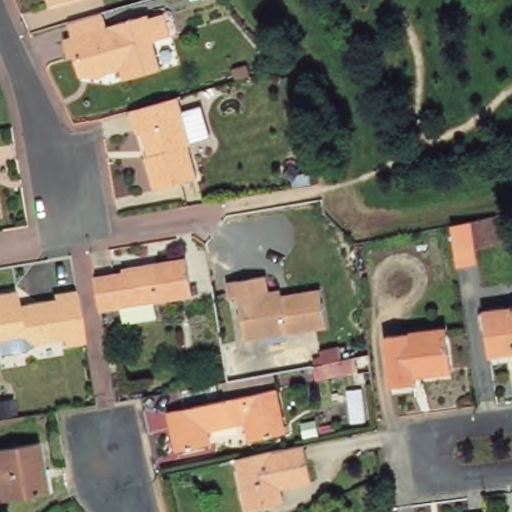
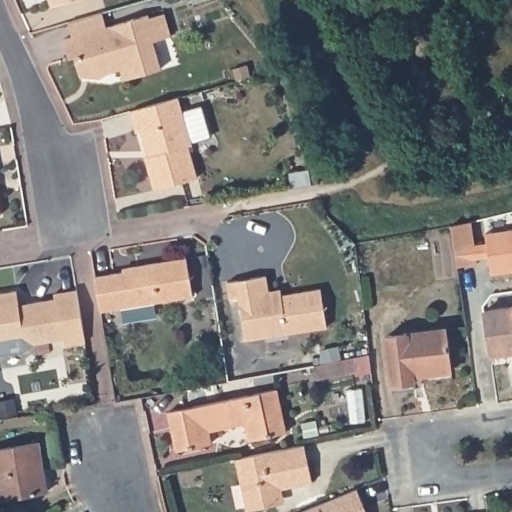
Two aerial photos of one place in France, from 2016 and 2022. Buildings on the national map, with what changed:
unchanged [(51,2),(50,0),(58,0),(51,2)]
unchanged [(101,11),(135,1),(139,15),(148,13),(149,16),(164,12),(170,34),(153,39),(160,67),(123,78),(120,68),(106,72),(99,69),(79,75),(74,55),(69,57),(63,38),(105,25),(101,11)]
unchanged [(192,147),(188,148),(197,179),(155,191),(146,158),(149,157),(142,132),(137,133),(130,114),(179,100),(192,147)]
unchanged [(500,251),(476,254),(478,268),(458,270),(452,227),(496,221),(500,251)]
unchanged [(125,272),(124,268),(182,258),(189,296),(96,312),(95,305),(90,278),(125,272)]
unchanged [(261,280),(264,295),(275,293),(277,299),(316,292),(323,331),(241,344),(234,302),(225,303),(223,286),(261,280)]
unchanged [(60,343),(59,337),(29,342),(20,333),(0,337),(0,291),(13,289),(16,303),(52,297),(51,292),(72,288),(80,340),(60,343)]
unchanged [(484,314),(512,310),(512,355),(489,358),(484,314)]
unchanged [(450,372),(413,378),(414,385),(393,389),(385,340),(445,331),(450,372)]
unchanged [(362,371),(321,380),(318,366),(359,359),(362,371)]
unchanged [(284,435),(247,442),(244,423),(207,431),(209,444),(176,451),(169,411),(275,391),(284,435)]
unchanged [(0,500),(0,449),(36,442),(44,491),(0,500)]
unchanged [(313,484),(273,492),(275,505),(247,511),(240,483),(244,478),(240,458),(305,445),(313,484)]
new [(368,512),(301,512),(359,488),(368,512)]

